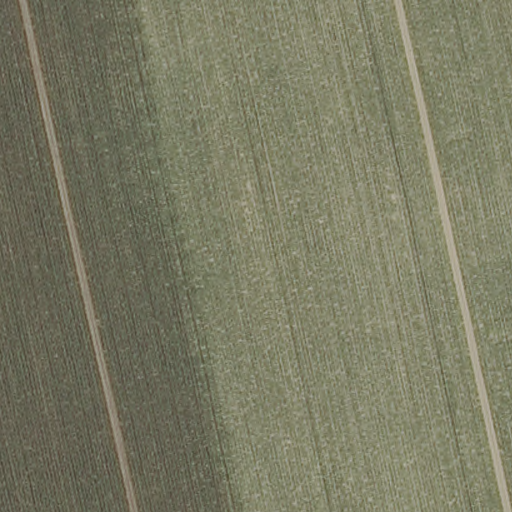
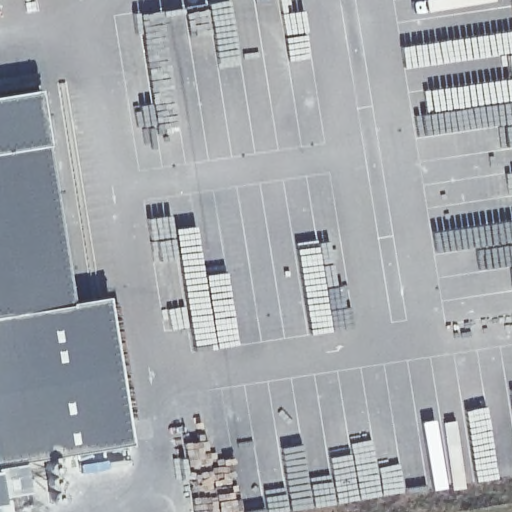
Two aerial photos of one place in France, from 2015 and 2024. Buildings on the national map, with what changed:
new [(112,307),(133,452),(0,474),(0,105),(40,99),(75,311),(112,307)]
new [(5,509),(0,510),(0,478),(5,509)]

